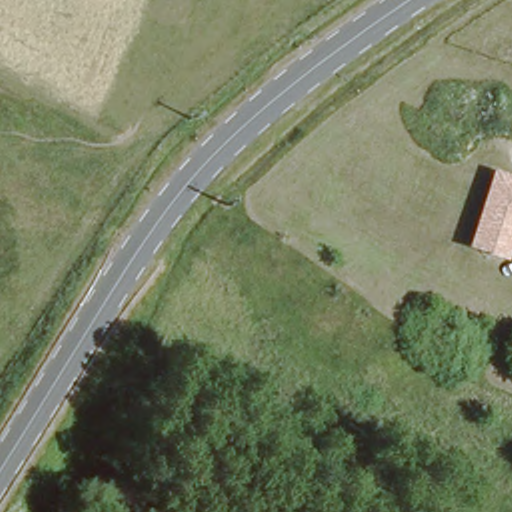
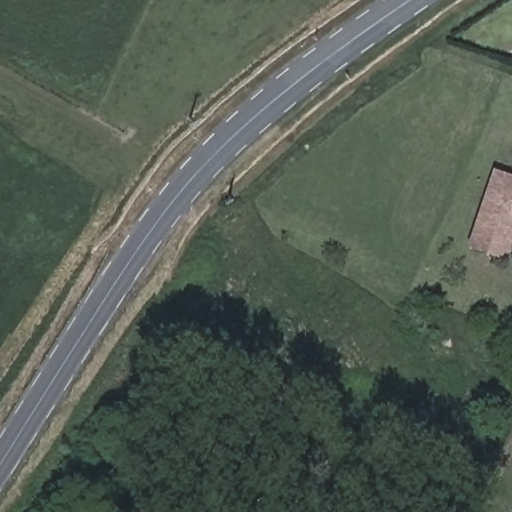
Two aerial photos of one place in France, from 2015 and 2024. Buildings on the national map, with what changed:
unchanged [(505,263),(466,249),(493,172),(512,178),(512,242),(505,263)]

